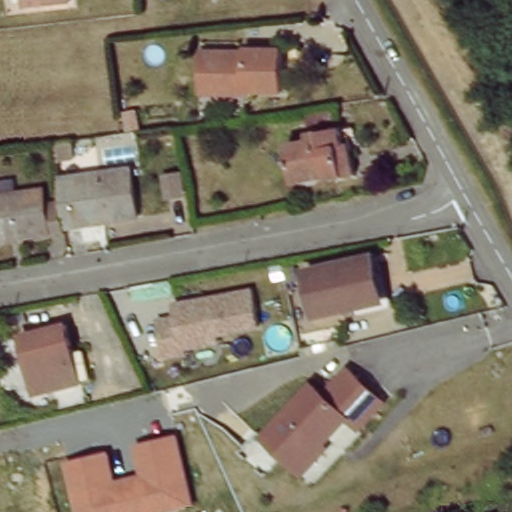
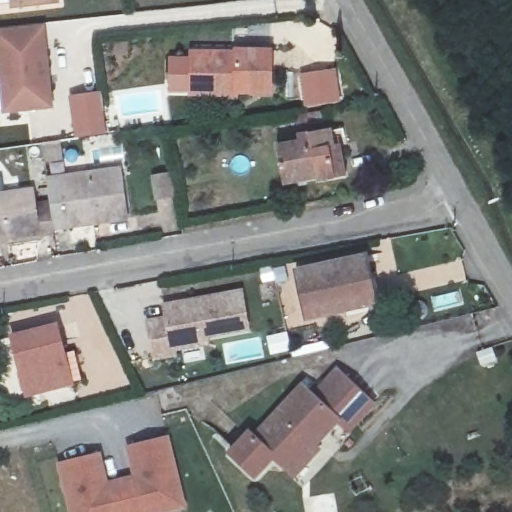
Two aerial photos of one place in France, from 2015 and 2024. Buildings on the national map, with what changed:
unchanged [(11,0),(57,0),(12,7),(11,0)]
new [(5,115),(0,75),(0,30),(44,24),(55,109),(5,115)]
unchanged [(272,90),(240,89),(240,93),(192,92),(193,55),(238,55),(239,48),(273,48),(272,90)]
new [(109,133),(76,138),(70,96),(102,91),(109,133)]
unchanged [(348,173),(290,182),(284,144),(342,134),(348,173)]
unchanged [(56,141),(63,140),(64,150),(46,152),(45,143),(56,141)]
unchanged [(69,174),(125,167),(131,218),(75,225),(60,227),(53,176),(69,174)]
unchanged [(42,236),(40,231),(0,236),(0,176),(8,175),(10,191),(23,191),(35,190),(37,203),(55,201),(59,234),(42,236)]
unchanged [(376,305),(310,317),(300,269),(366,257),(376,305)]
unchanged [(198,342),(201,350),(151,361),(147,326),(163,322),(164,304),(238,291),(245,334),(198,342)]
unchanged [(73,382),(27,390),(16,333),(62,324),(73,382)]
unchanged [(250,436),(303,380),(314,396),(337,371),(374,407),(348,436),(333,421),(314,441),(319,449),(287,478),(250,436)]
unchanged [(101,452),(109,481),(134,475),(127,447),(171,437),(189,509),(177,512),(69,512),(59,463),(101,452)]

